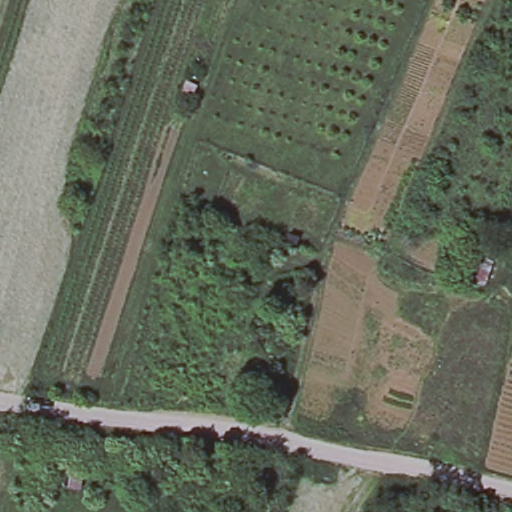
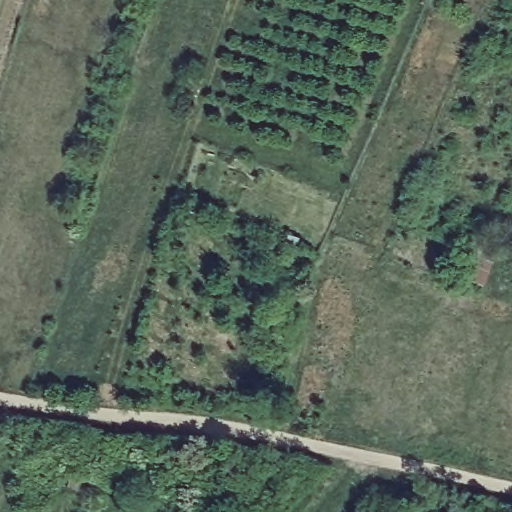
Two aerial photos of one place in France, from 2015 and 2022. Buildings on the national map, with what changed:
unchanged [(496,259),(486,284),(462,273),(470,250),(496,259)]

